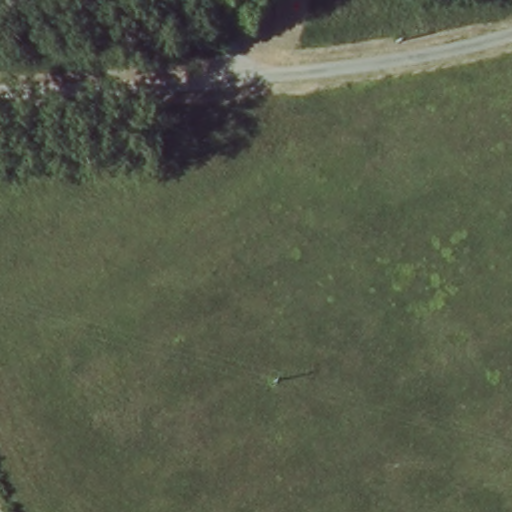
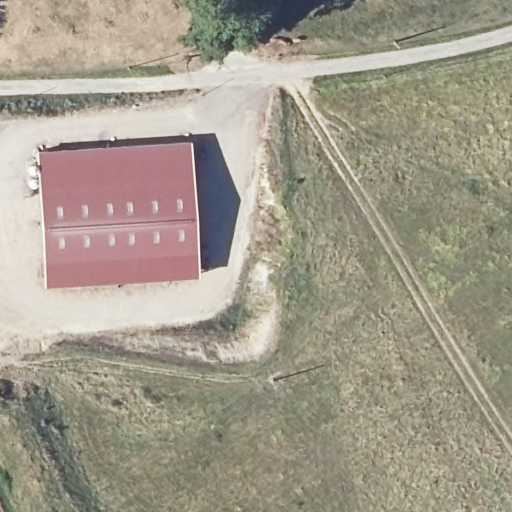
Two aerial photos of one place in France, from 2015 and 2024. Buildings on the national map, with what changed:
new [(196,126),(199,156),(206,233),(57,247),(55,228),(46,141),(196,126)]
new [(206,233),(209,260),(60,274),(57,247),(206,233)]

